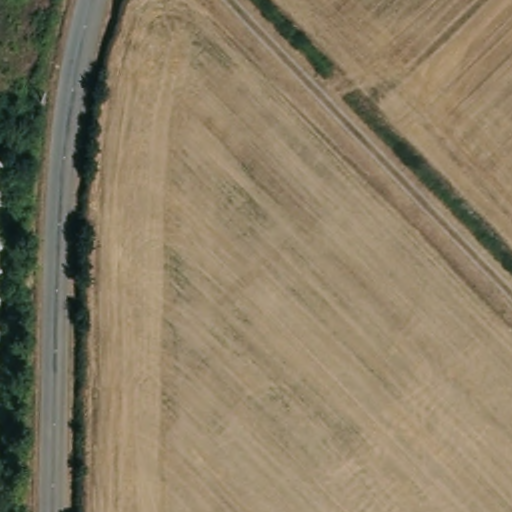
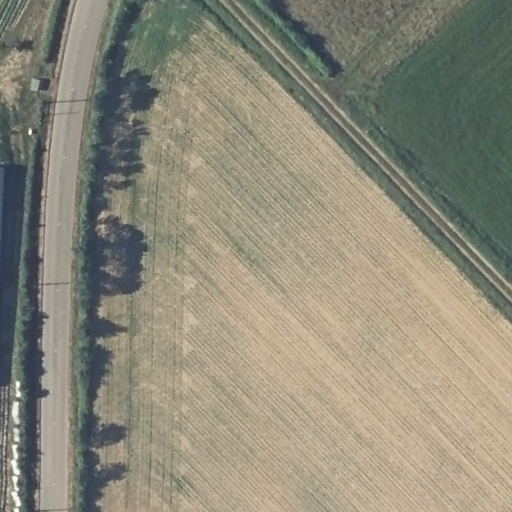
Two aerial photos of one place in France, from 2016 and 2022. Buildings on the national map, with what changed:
unchanged [(2,169),(6,171),(0,267),(0,169),(2,169)]

